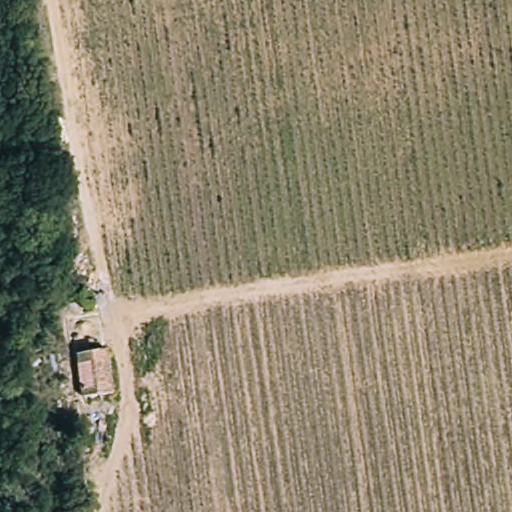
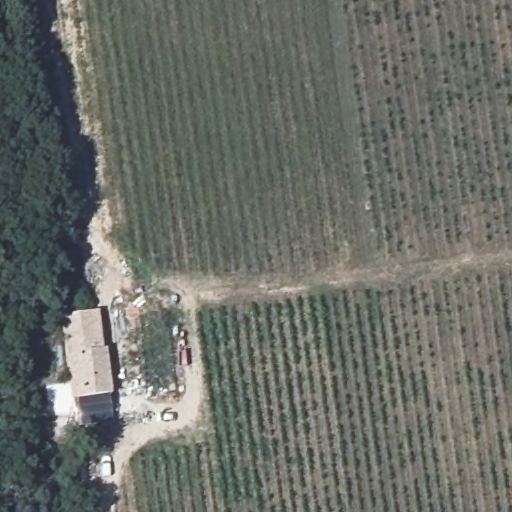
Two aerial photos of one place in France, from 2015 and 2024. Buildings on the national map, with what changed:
new [(116,395),(71,400),(65,356),(61,316),(100,311),(105,350),(109,350),(116,395)]
demolished [(106,391),(79,392),(77,348),(104,348),(106,391)]

